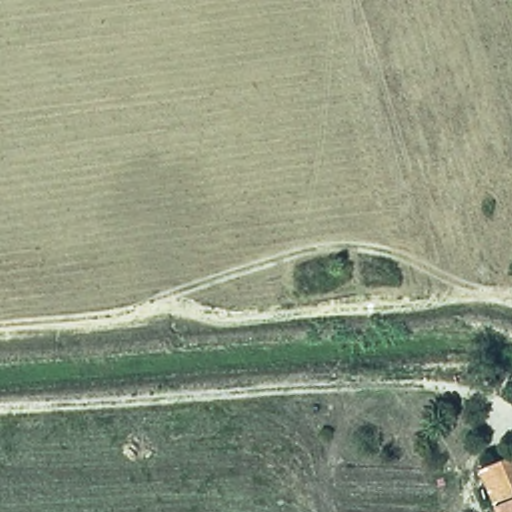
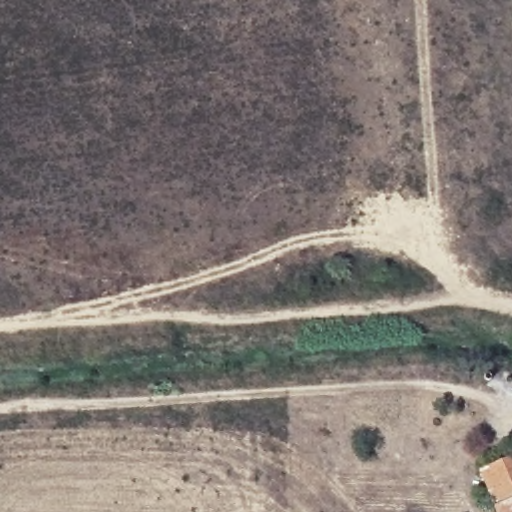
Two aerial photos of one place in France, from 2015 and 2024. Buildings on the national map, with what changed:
unchanged [(512,460),(512,512),(495,512),(494,509),(478,475),(512,460)]

